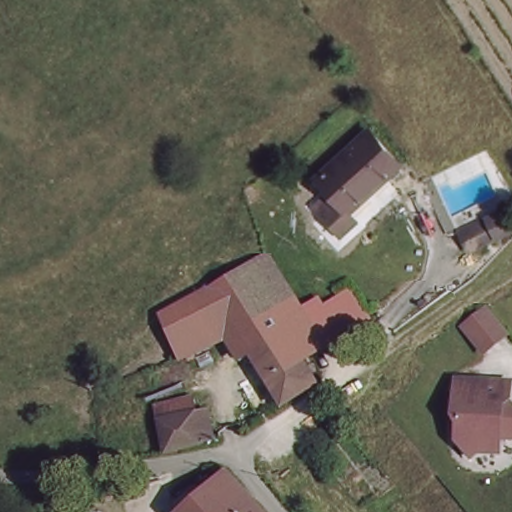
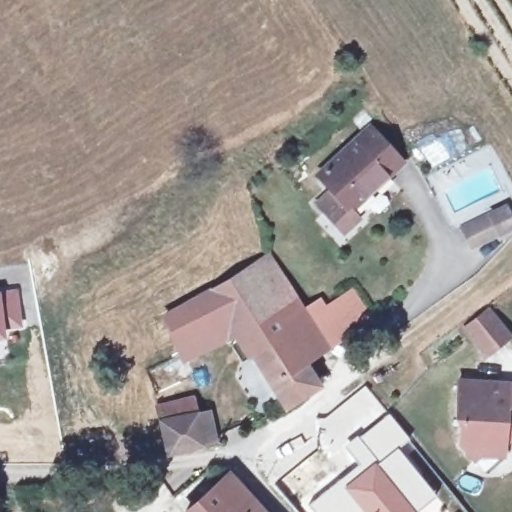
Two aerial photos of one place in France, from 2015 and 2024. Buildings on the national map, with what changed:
unchanged [(407,164),(389,179),(398,189),(361,219),(368,227),(346,246),(313,206),(329,194),(318,180),(379,130),(407,164)]
unchanged [(512,228),(512,231),(481,242),(472,220),(504,209),(512,228)]
unchanged [(306,325),(348,296),(364,321),(300,367),(318,392),(288,409),(238,337),(203,358),(183,365),(166,322),(203,306),(266,263),(306,325)]
new [(0,290),(18,287),(22,327),(4,330),(4,337),(0,338),(0,290)]
unchanged [(487,362),(462,330),(491,307),(512,334),(512,342),(487,362)]
unchanged [(506,401),(512,412),(512,413),(512,438),(489,441),(477,454),(459,436),(462,414),(454,413),(456,377),(507,375),(506,401)]
unchanged [(206,447),(172,452),(164,402),(198,398),(206,447)]
new [(389,412),(409,437),(398,446),(376,459),(360,468),(356,463),(343,446),(389,412)]
new [(398,446),(437,495),(418,512),(376,459),(398,446)]
new [(360,468),(376,459),(418,512),(362,512),(341,484),(360,468)]
new [(356,463),(360,468),(341,484),(362,512),(310,512),(304,505),(356,463)]
unchanged [(250,512),(187,512),(223,482),(250,512)]
new [(118,483),(119,498),(84,502),(83,487),(118,483)]

